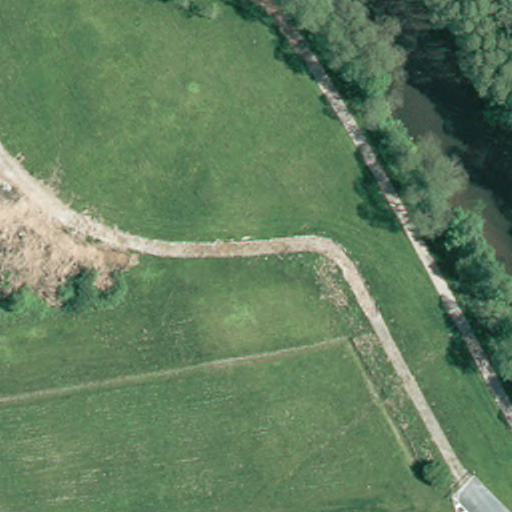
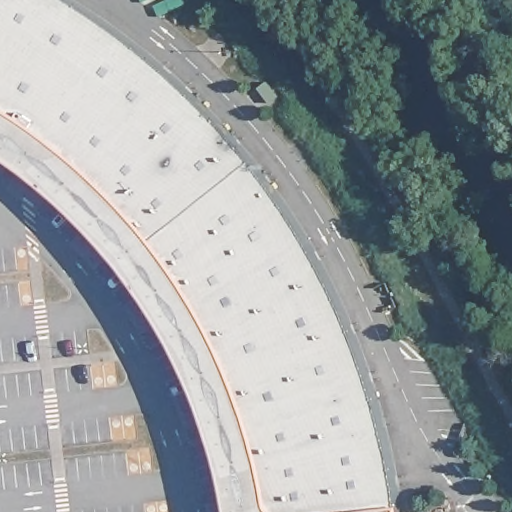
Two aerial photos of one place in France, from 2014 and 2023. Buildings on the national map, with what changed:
new [(208,428),(187,376),(164,329),(134,285),(105,248),(62,205),(24,173),(0,157),(0,0),(76,0),(80,3),(110,22),(139,46),(168,69),(195,93),(220,120),(244,146),(264,172),(287,205),(305,234),(323,266),(339,298),(353,331),(366,365),(379,399),(387,433),(395,466),(401,507),(402,512),(229,512),(220,472),(208,428)]

